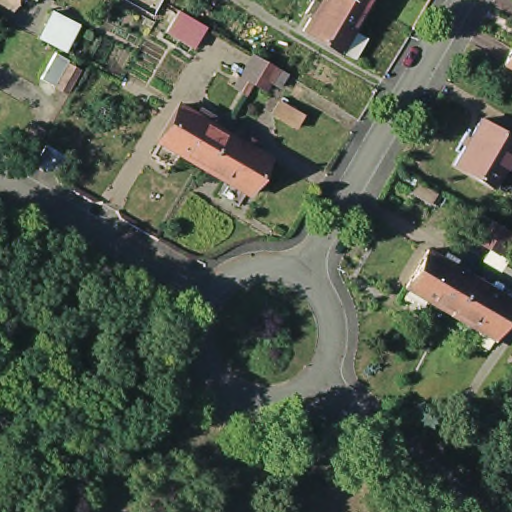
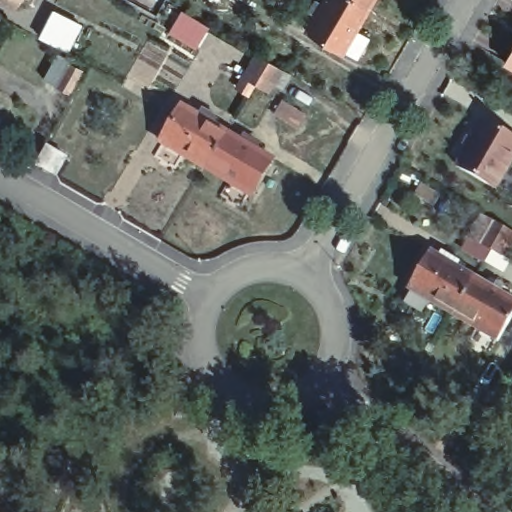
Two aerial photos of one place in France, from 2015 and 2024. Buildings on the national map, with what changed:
unchanged [(18,0),(21,0),(20,1),(18,0)]
unchanged [(344,49),(344,50),(306,28),(322,0),(362,0),(370,5),(357,27),(371,36),(359,57),(344,49)]
unchanged [(362,0),(373,0),(370,5),(362,0)]
unchanged [(182,12),(208,28),(195,50),(169,34),(182,12)]
unchanged [(68,54),(41,40),(55,13),(82,27),(68,54)]
unchanged [(512,51),(512,77),(504,72),(501,70),(512,51)]
unchanged [(260,87),(248,79),(261,57),(273,65),(285,72),(273,94),(260,87)]
unchanged [(69,95),(58,87),(71,65),(83,72),(69,95)]
unchanged [(161,140),(183,101),(228,127),(218,146),(206,166),(161,140)]
unchanged [(299,131),(276,117),(283,104),(307,117),(299,131)]
unchanged [(457,162),(484,116),(512,132),(512,156),(496,185),(457,162)]
unchanged [(218,146),(228,127),(274,155),(251,192),(206,166),(218,146)]
unchanged [(56,176),(38,165),(48,147),(67,159),(56,176)]
unchanged [(480,240),(493,219),(505,226),(512,230),(512,243),(505,255),(493,247),(480,240)]
unchanged [(467,293),(465,296),(454,316),(409,289),(430,252),(475,278),(467,293)]
unchanged [(512,317),(499,341),(454,316),(465,296),(467,293),(475,278),(512,299),(512,317)]

